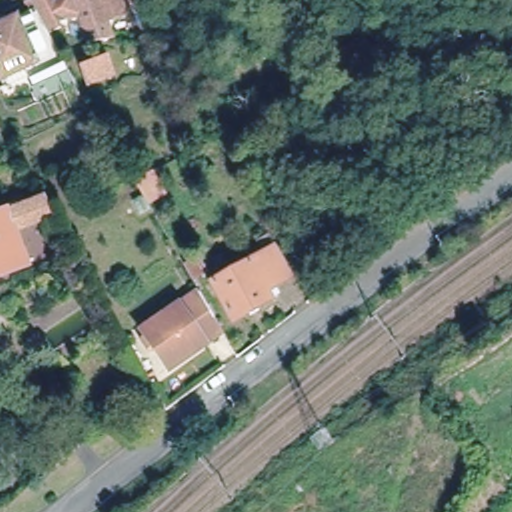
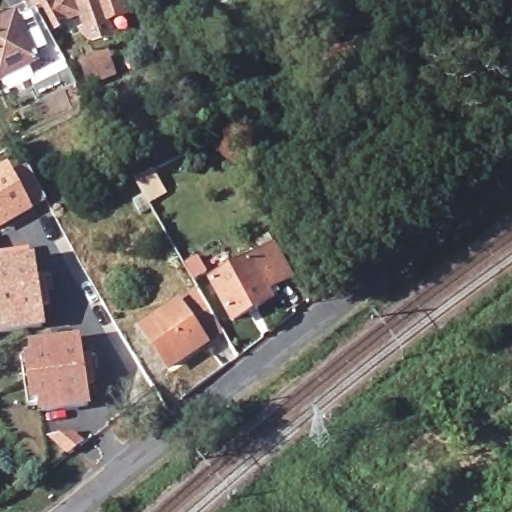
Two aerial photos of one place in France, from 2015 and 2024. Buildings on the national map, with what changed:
unchanged [(0,78),(0,25),(29,11),(24,2),(28,0),(30,0),(31,1),(49,34),(72,75),(38,91),(28,71),(7,81),(4,76),(0,78)]
unchanged [(121,0),(125,12),(107,18),(113,36),(89,40),(79,28),(85,26),(81,13),(58,21),(61,26),(49,34),(31,1),(33,0),(121,0)]
unchanged [(331,76),(325,61),(323,55),(352,45),(354,51),(360,65),(331,76)]
unchanged [(114,74),(89,83),(82,65),(107,56),(114,74)]
new [(13,176),(27,168),(45,201),(0,230),(0,171),(8,166),(13,176)]
unchanged [(140,214),(133,201),(143,195),(135,181),(153,172),(164,194),(147,202),(150,208),(140,214)]
demolished [(48,207),(9,222),(22,255),(0,263),(0,203),(40,187),(48,207)]
unchanged [(289,271),(262,286),(267,295),(228,317),(206,279),(272,242),(289,271)]
new [(0,263),(36,258),(46,329),(0,335),(0,263)]
unchanged [(198,258),(207,273),(193,282),(184,266),(198,258)]
unchanged [(194,340),(159,365),(133,328),(190,288),(205,315),(213,327),(194,340)]
new [(39,404),(31,405),(25,356),(32,355),(29,344),(81,337),(91,409),(41,416),(39,404)]
demolished [(31,446),(58,432),(67,450),(40,464),(31,446)]

